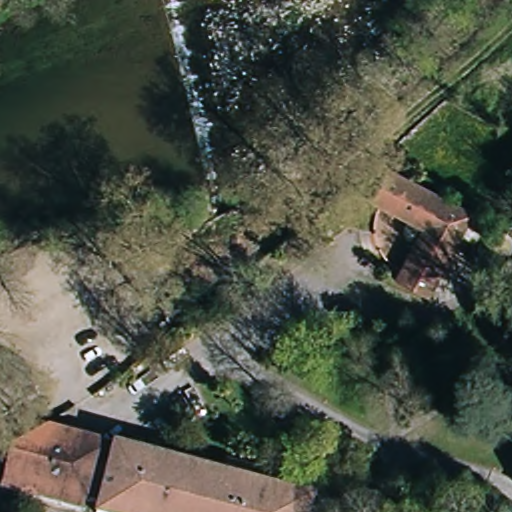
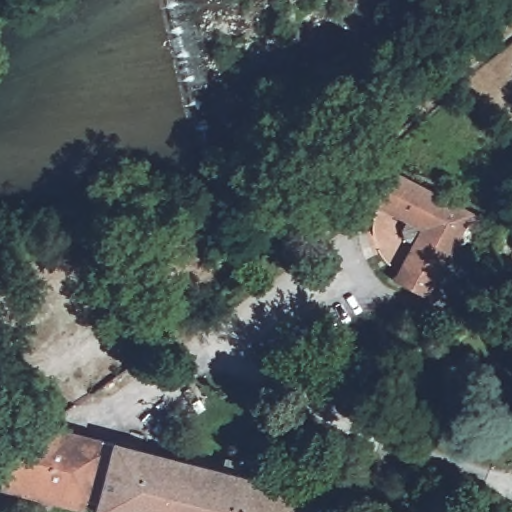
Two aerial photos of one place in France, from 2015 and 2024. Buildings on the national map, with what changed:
unchanged [(427,299),(394,281),(421,228),(387,210),(404,176),(485,221),(467,254),(455,247),(427,299)]
unchanged [(45,423),(311,493),(305,512),(96,512),(0,487),(0,450),(45,423)]

